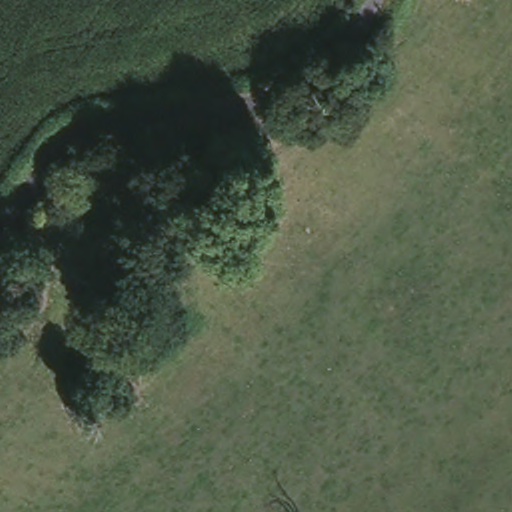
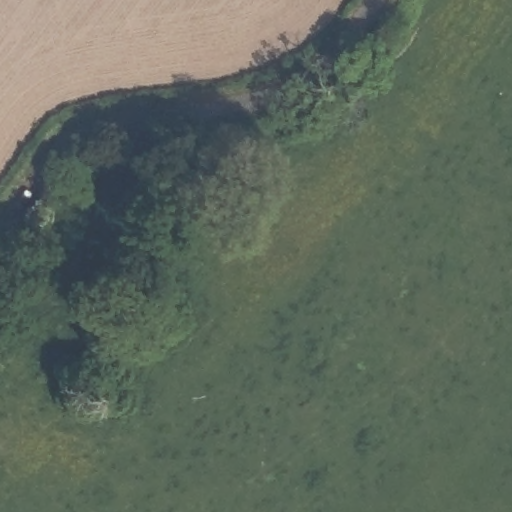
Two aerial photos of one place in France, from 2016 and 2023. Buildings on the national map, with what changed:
[]

